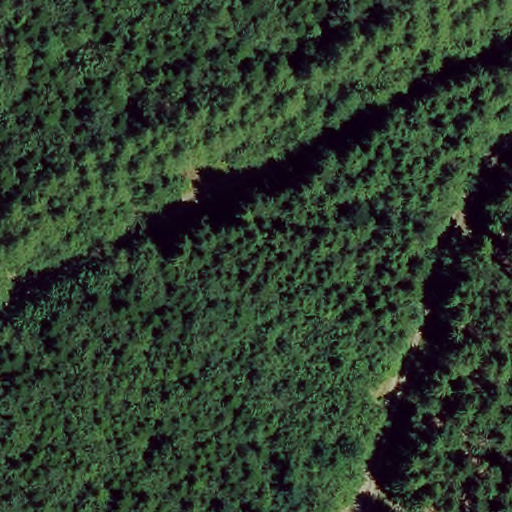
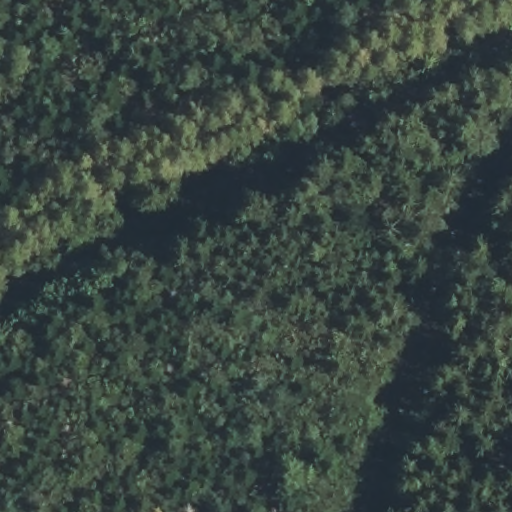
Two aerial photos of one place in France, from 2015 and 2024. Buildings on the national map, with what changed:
unchanged [(410,368),(430,371),(427,400),(405,395),(410,368)]

